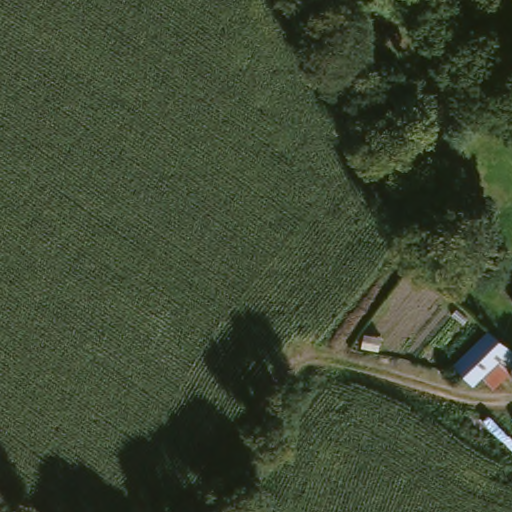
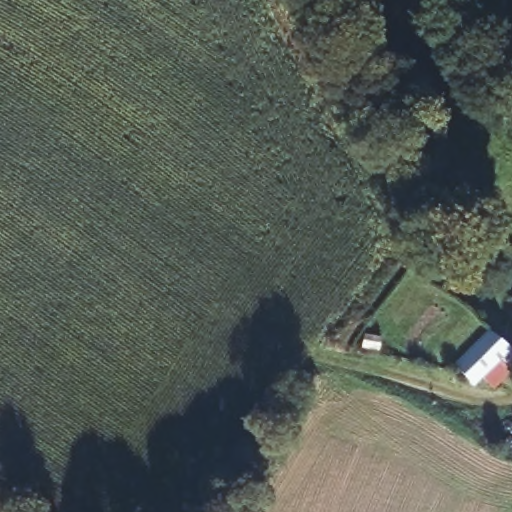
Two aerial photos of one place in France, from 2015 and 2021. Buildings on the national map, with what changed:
unchanged [(488,333),(511,354),(474,391),(453,371),(488,333)]

